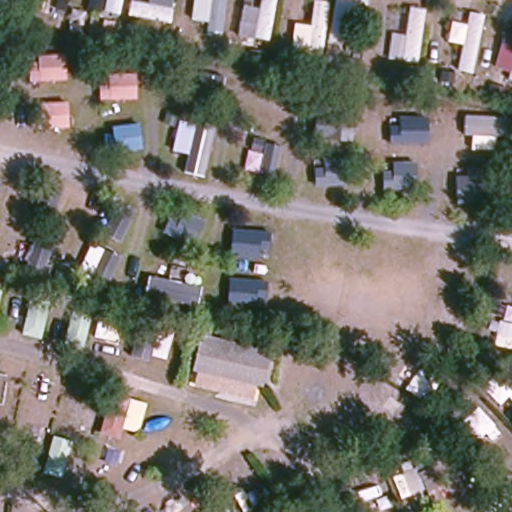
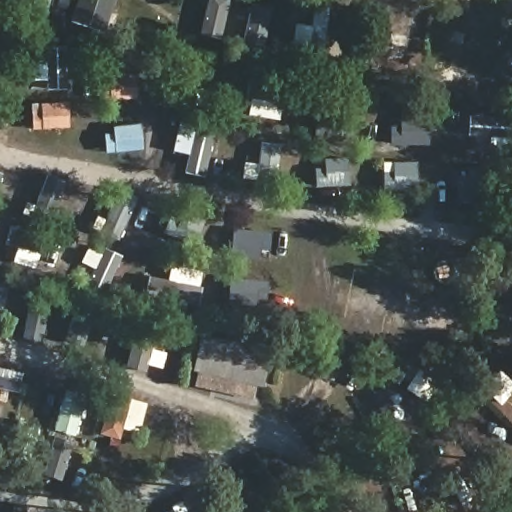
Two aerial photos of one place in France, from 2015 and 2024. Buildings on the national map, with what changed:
unchanged [(262,385),(195,376),(200,340),(268,350),(262,385)]

